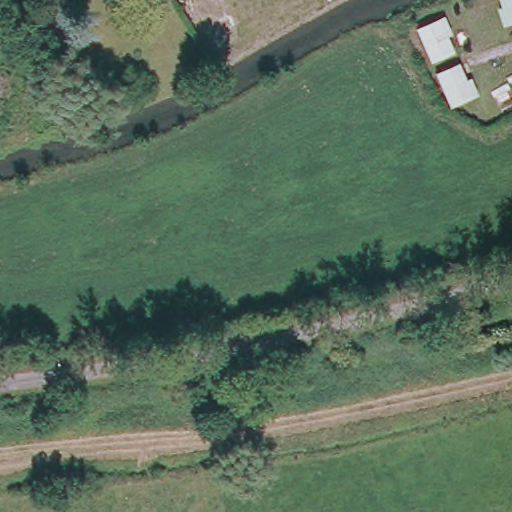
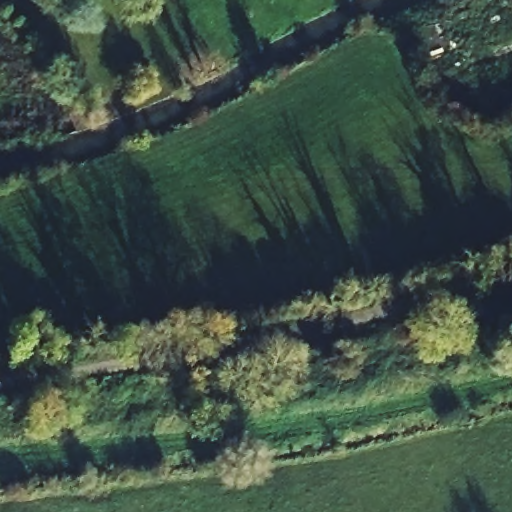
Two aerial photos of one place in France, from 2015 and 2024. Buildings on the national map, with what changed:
[]

